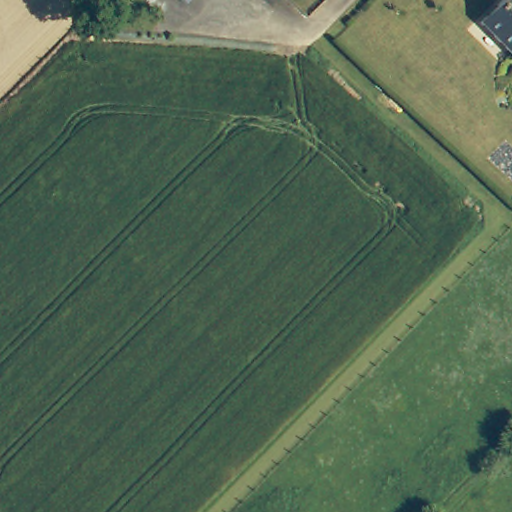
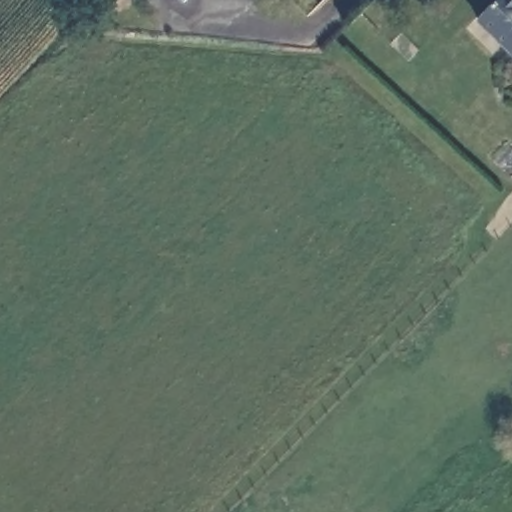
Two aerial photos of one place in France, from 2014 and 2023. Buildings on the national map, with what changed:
unchanged [(506,0),(512,0),(512,51),(484,21),(506,0)]

